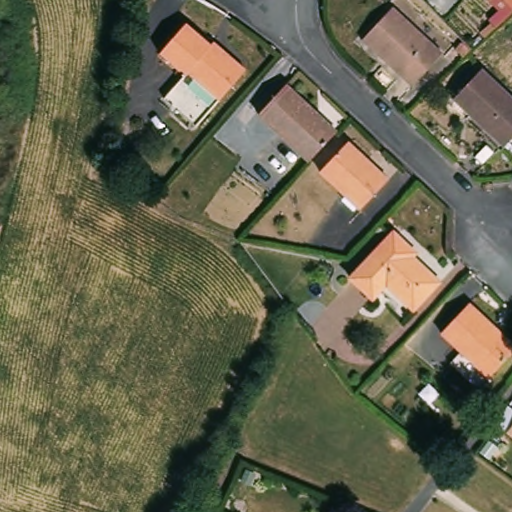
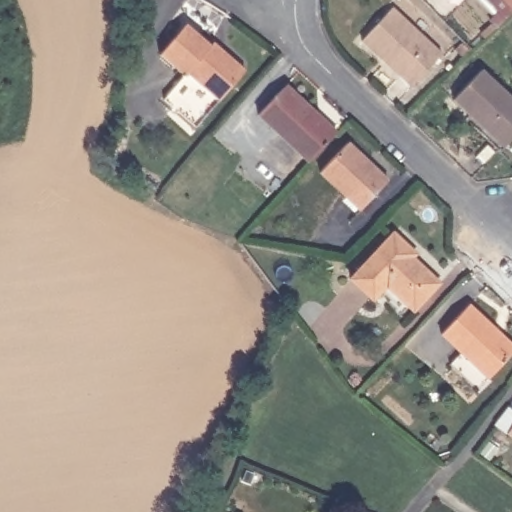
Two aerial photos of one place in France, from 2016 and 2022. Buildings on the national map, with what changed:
unchanged [(395,5),(444,52),(413,85),(363,37),(395,5)]
unchanged [(222,34),(253,63),(202,117),(172,88),(190,68),(165,44),(193,14),(218,37),(222,34)]
unchanged [(486,66),(512,93),(512,139),(502,149),(453,99),(486,66)]
unchanged [(311,162),(260,114),(288,85),(339,133),(311,162)]
unchanged [(351,144),(392,182),(363,212),(323,173),(351,144)]
unchanged [(440,279),(415,306),(388,281),(375,295),(352,275),(395,230),(417,250),(414,255),(440,279)]
unchanged [(473,299),(512,334),(512,353),(483,385),(455,359),(467,346),(446,327),(473,299)]
unchanged [(512,425),(512,426),(511,425),(512,425)]

